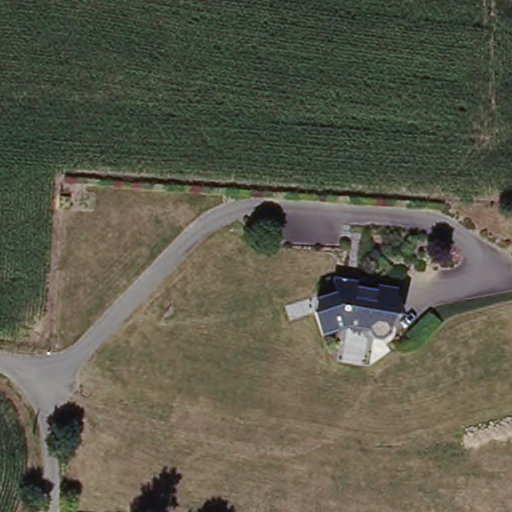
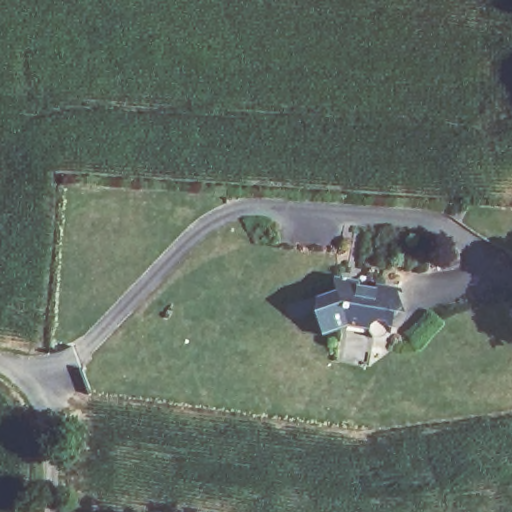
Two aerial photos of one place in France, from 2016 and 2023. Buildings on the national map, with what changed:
unchanged [(364,280),(363,284),(381,287),(381,283),(403,286),(403,291),(410,310),(410,311),(399,310),(396,332),(388,338),(378,337),(373,330),(373,325),(352,322),(326,331),(319,310),(322,297),(341,290),(339,281),(339,276),(353,278),(364,280)]

